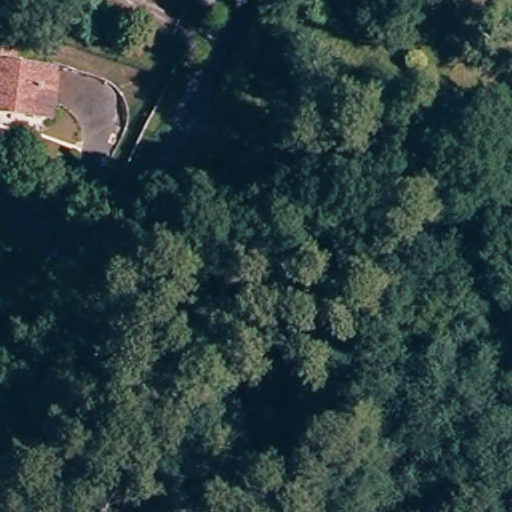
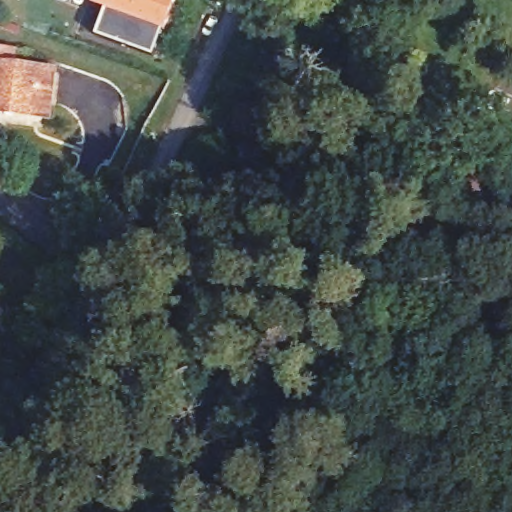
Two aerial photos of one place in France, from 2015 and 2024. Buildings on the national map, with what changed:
new [(164,31),(154,56),(99,37),(109,11),(93,6),(95,0),(179,0),(168,33),(164,31)]
unchanged [(0,114),(0,52),(13,53),(12,68),(54,72),(49,120),(0,114)]
unchanged [(4,320),(0,325),(0,318),(4,320)]

